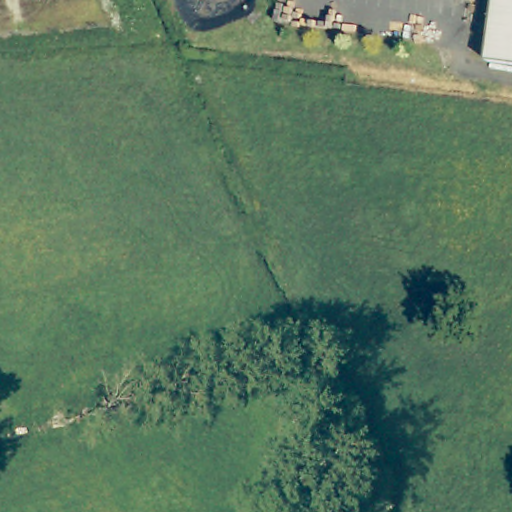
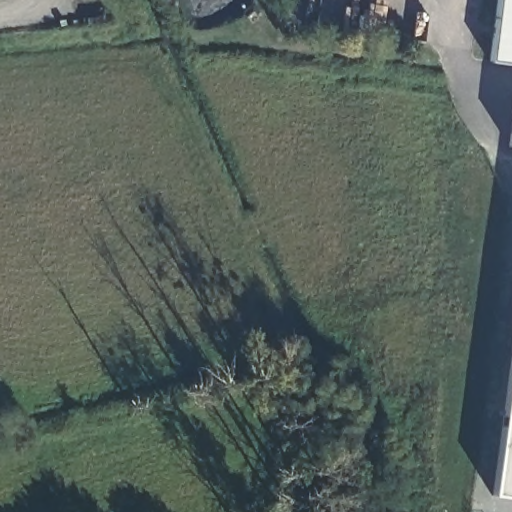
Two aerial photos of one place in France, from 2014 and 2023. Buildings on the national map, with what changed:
unchanged [(490,57),(497,0),(512,0),(512,60),(490,57)]
new [(490,497),(512,329),(512,500),(490,497)]

